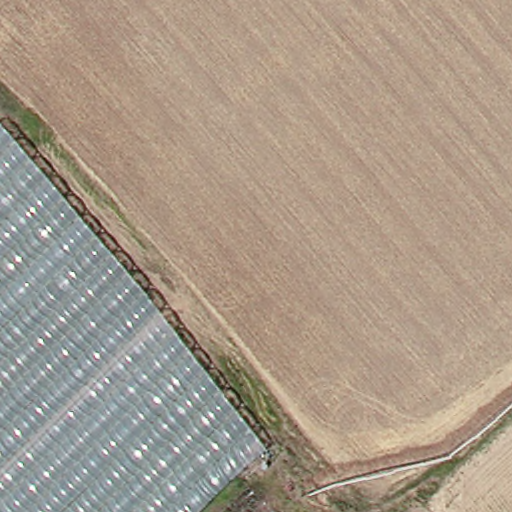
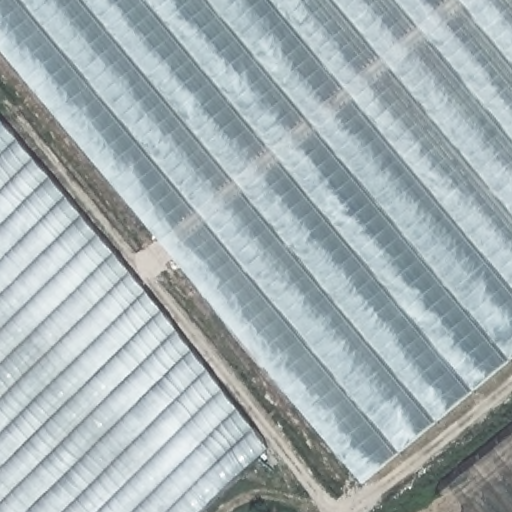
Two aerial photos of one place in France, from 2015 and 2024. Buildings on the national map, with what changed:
new [(512,360),(363,484),(0,48),(0,0),(512,0),(512,360)]
demolished [(512,292),(334,464),(139,216),(359,0),(512,0),(512,292)]
unchanged [(270,442),(199,512),(0,512),(0,128),(10,118),(270,442)]

